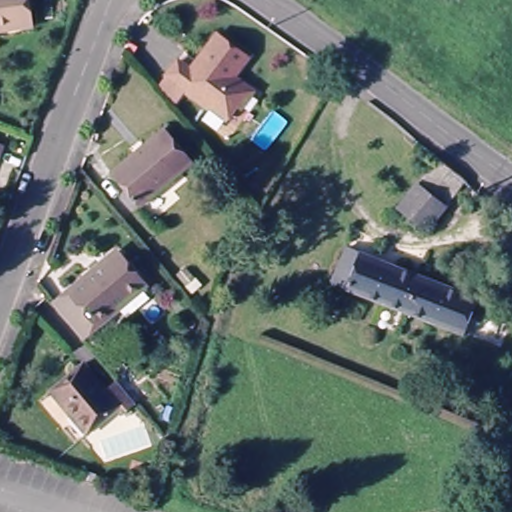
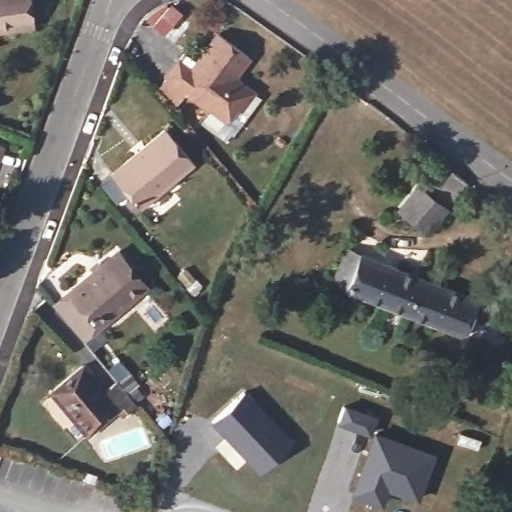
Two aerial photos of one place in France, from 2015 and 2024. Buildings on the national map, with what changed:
unchanged [(37,29),(0,34),(0,0),(33,0),(37,29)]
unchanged [(165,84),(174,72),(184,58),(197,68),(225,33),(253,55),(237,74),(257,89),(244,106),(243,105),(233,117),(216,104),(214,105),(194,89),(195,88),(192,86),(183,98),(165,84)]
unchanged [(167,128),(195,163),(163,191),(142,208),(113,174),(167,128)]
unchanged [(4,147),(0,158),(0,146),(4,147)]
unchanged [(468,182),(428,233),(399,210),(440,161),(468,182)]
unchanged [(478,341),(461,334),(395,309),(328,283),(342,248),(359,256),(475,299),(492,305),(478,341)]
unchanged [(119,252),(148,288),(84,341),(53,305),(119,252)]
unchanged [(125,421),(119,413),(89,439),(54,397),(87,371),(107,395),(118,386),(132,375),(142,388),(128,399),(137,410),(125,421)]
new [(246,388),(294,440),(259,474),(211,423),(246,388)]
new [(336,425),(344,403),(378,414),(373,429),(437,452),(419,500),(389,490),(383,504),(352,492),(370,437),(336,425)]

